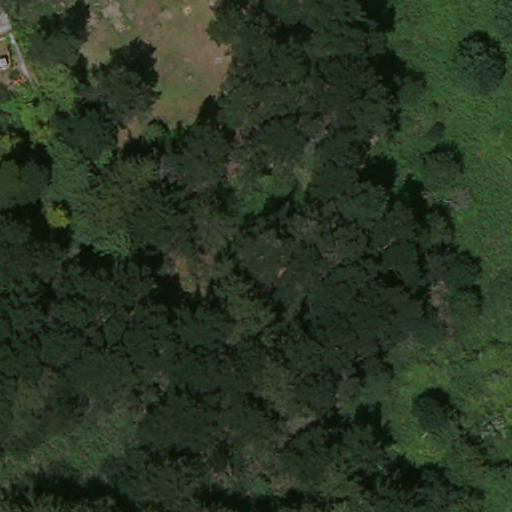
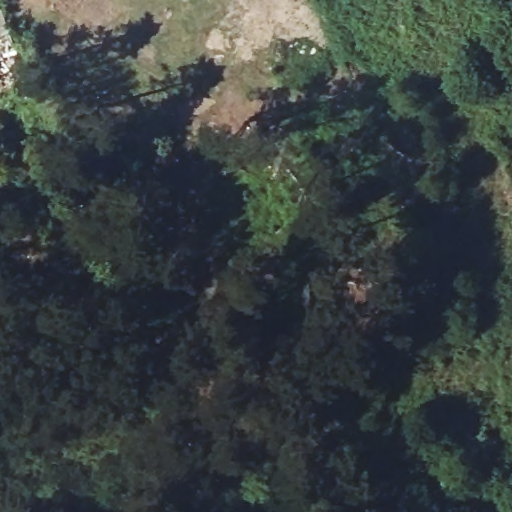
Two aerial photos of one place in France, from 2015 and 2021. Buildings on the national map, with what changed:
unchanged [(24,25),(13,31),(3,11),(16,4),(24,25)]
unchanged [(38,55),(29,58),(26,47),(33,44),(38,55)]

